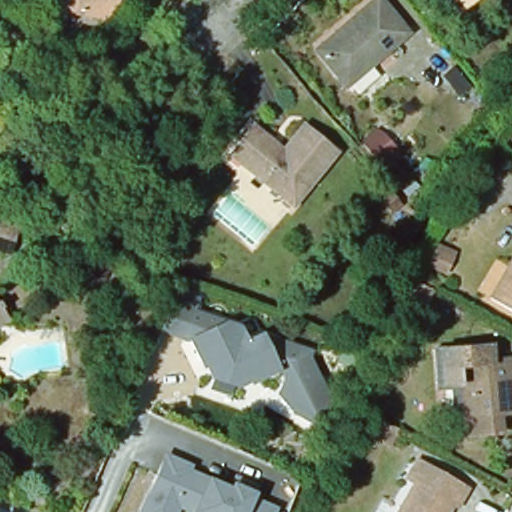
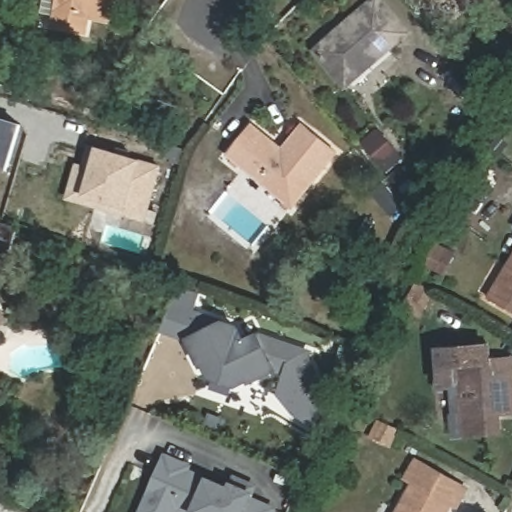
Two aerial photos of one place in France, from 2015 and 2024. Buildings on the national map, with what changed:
unchanged [(60,11),(62,0),(115,0),(110,22),(60,11)]
unchanged [(343,89),(313,52),(373,0),(375,0),(406,36),(343,89)]
unchanged [(454,0),(472,0),(461,9),(454,0)]
new [(0,173),(0,123),(24,131),(9,176),(0,173)]
unchanged [(280,151),(300,128),(333,155),(290,206),(227,156),(250,129),(280,151)]
unchanged [(392,149),(377,161),(365,146),(380,134),(392,149)]
new [(189,153),(185,163),(161,157),(164,146),(189,153)]
new [(88,170),(95,149),(164,170),(148,223),(125,216),(72,200),(81,167),(96,172),(88,170)]
new [(123,152),(135,156),(133,160),(121,157),(123,152)]
unchanged [(11,257),(0,255),(0,226),(18,230),(11,257)]
unchanged [(488,297),(512,257),(512,312),(488,297)]
unchanged [(181,287),(201,295),(196,311),(313,353),(310,361),(325,389),(317,420),(299,422),(277,397),(284,371),(278,370),(235,390),(207,381),(184,340),(161,333),(181,287)]
unchanged [(0,324),(0,315),(4,321),(0,324)]
unchanged [(485,433),(456,436),(454,415),(461,415),(459,385),(441,387),(437,350),(490,345),(491,363),(511,361),(512,371),(512,412),(499,413),(501,432),(485,433)]
unchanged [(177,505),(174,512),(141,512),(165,456),(188,465),(186,470),(230,489),(232,485),(235,477),(255,485),(251,493),(250,497),(274,508),(272,512),(195,512),(177,505)]
unchanged [(456,508),(451,505),(447,512),(397,512),(412,485),(405,480),(414,463),(465,491),(456,508)]

